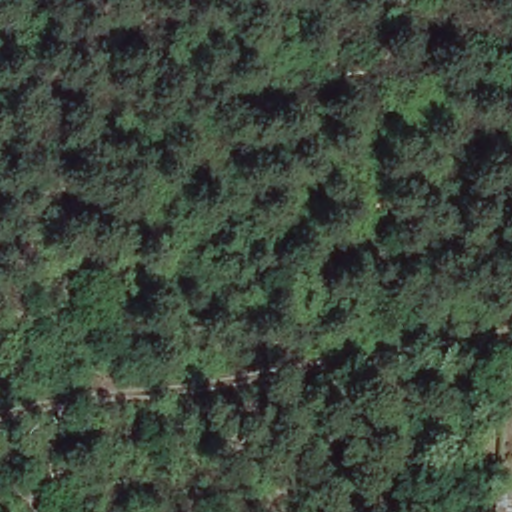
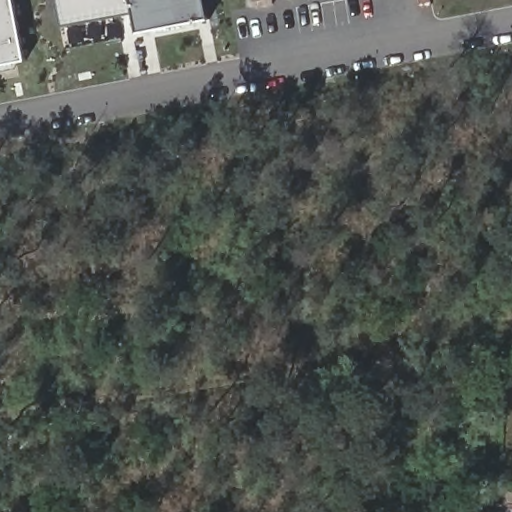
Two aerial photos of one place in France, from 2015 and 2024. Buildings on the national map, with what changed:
new [(26,61),(0,65),(0,0),(14,0),(26,61)]
new [(209,20),(137,34),(133,14),(60,29),(55,0),(205,0),(209,20)]
unchanged [(512,480),(512,512),(495,512),(495,479),(512,480)]

